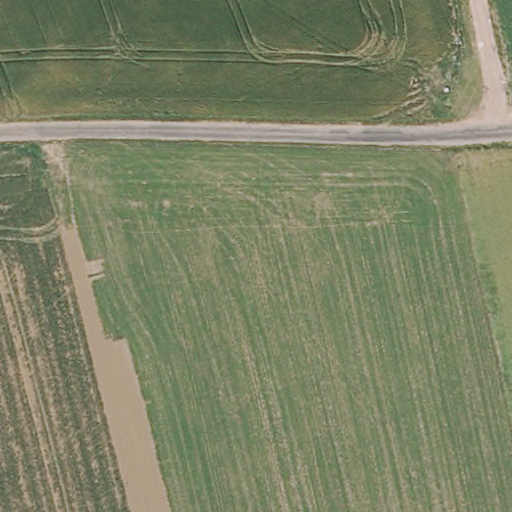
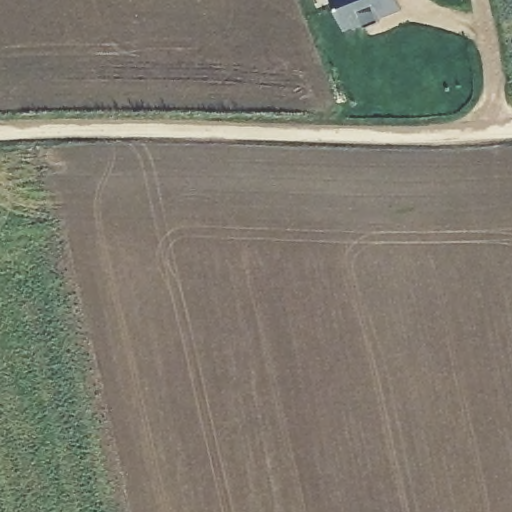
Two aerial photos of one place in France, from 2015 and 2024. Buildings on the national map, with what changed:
new [(401,6),(379,14),(381,18),(364,25),(362,19),(343,27),(332,0),(398,0),(401,6)]

